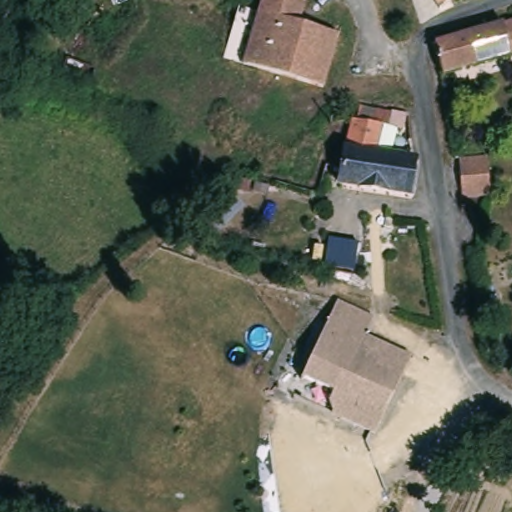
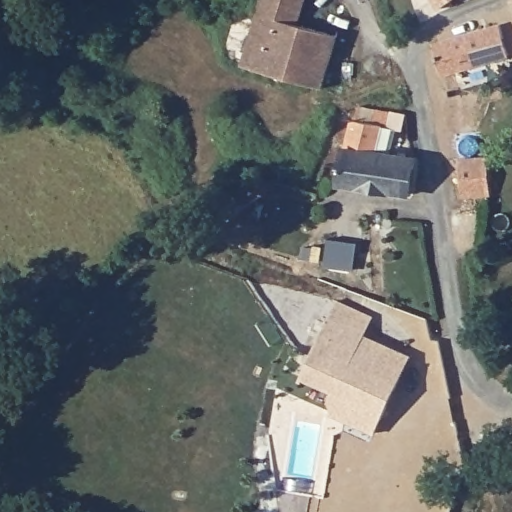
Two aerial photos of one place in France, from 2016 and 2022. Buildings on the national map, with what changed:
unchanged [(275,13),(260,66),(242,61),(260,0),(306,0),(300,21),(275,13)]
unchanged [(436,0),(453,0),(441,11),(436,0)]
unchanged [(260,66),(275,13),(300,21),(338,33),(332,61),(345,66),(338,84),(325,79),(321,87),(259,70),(260,66)]
unchanged [(512,55),(441,74),(441,73),(435,44),(512,23),(512,55)]
unchanged [(351,126),(356,129),(360,110),(392,117),(387,136),(395,138),(390,159),(412,165),(405,199),(335,183),(344,148),(348,149),(351,126)]
unchanged [(490,169),(491,204),(464,208),(457,169),(490,169)]
unchanged [(336,302),(373,316),(363,340),(407,362),(376,437),(294,402),(336,302)]

